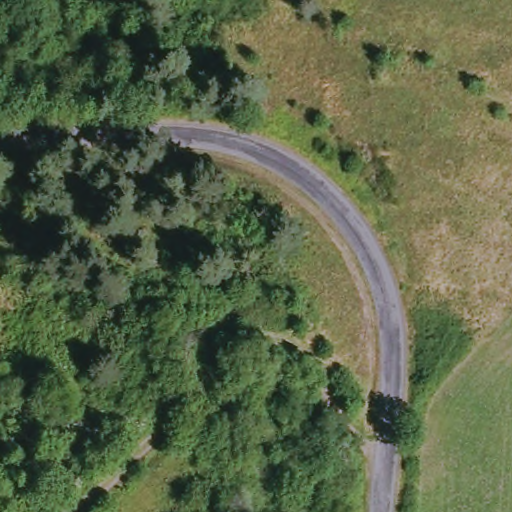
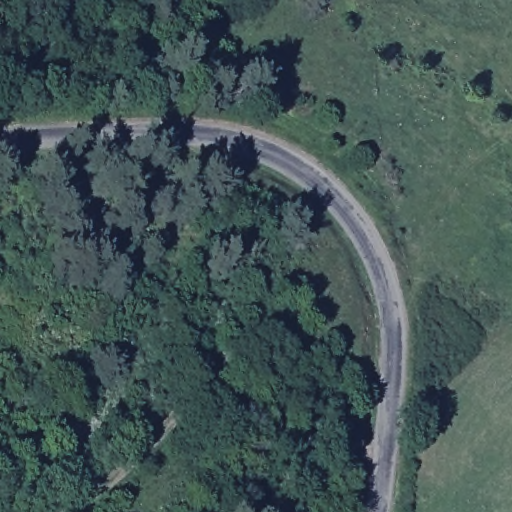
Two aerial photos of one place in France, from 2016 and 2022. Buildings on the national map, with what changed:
[]

